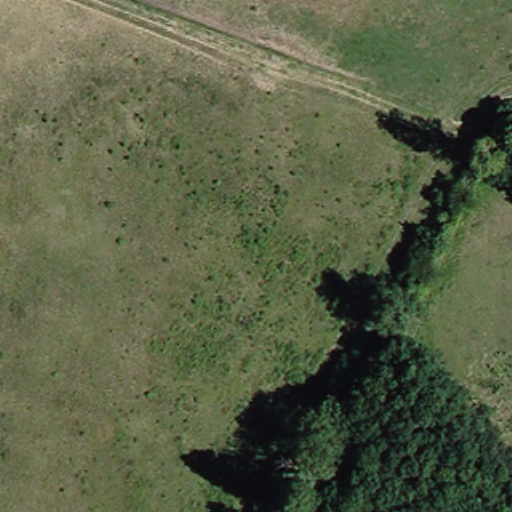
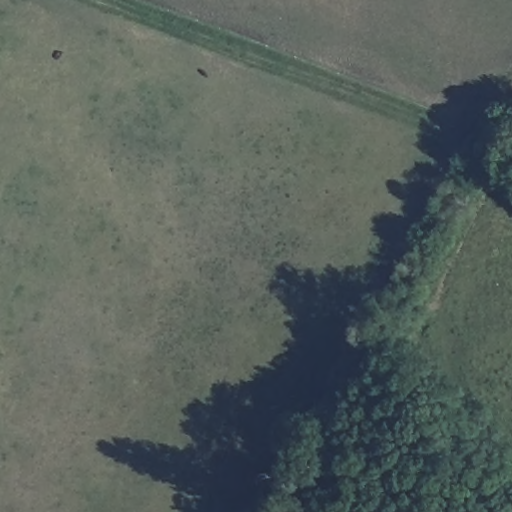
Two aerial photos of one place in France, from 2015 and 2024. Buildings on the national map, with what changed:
[]

